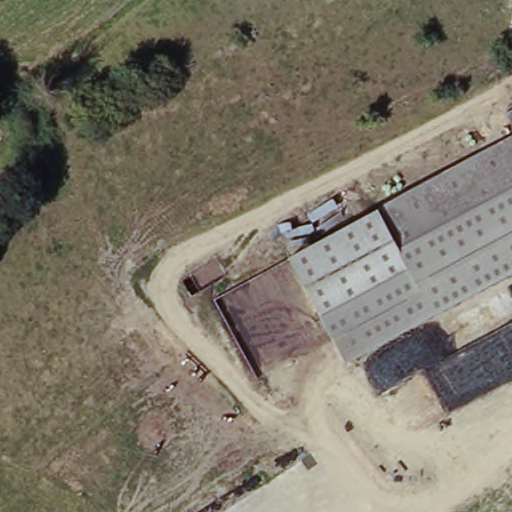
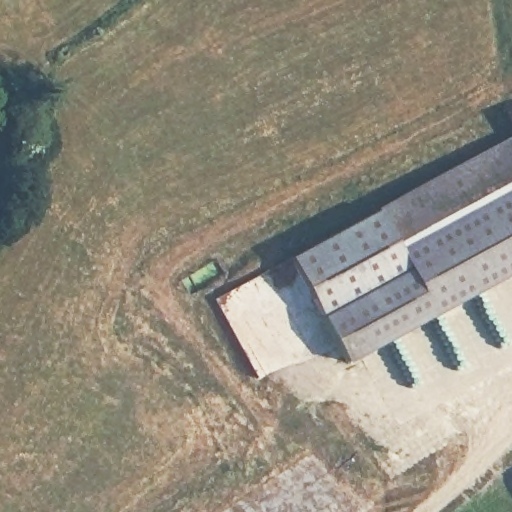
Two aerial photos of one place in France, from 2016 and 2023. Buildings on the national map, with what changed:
unchanged [(512,117),(512,118),(511,117),(512,117)]
unchanged [(289,257),(381,208),(512,138),(512,270),(346,361),(289,257)]

